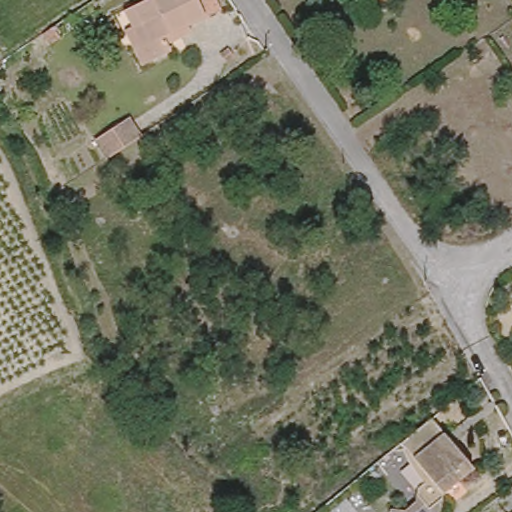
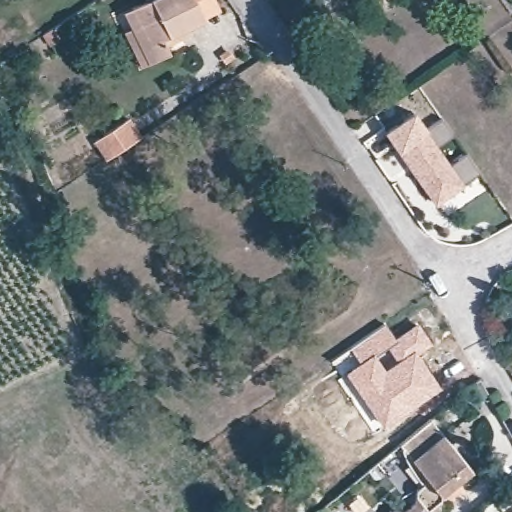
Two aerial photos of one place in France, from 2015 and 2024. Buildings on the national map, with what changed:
unchanged [(131,27),(123,12),(145,1),(145,0),(195,0),(205,20),(188,28),(192,34),(167,46),(170,52),(148,63),(141,67),(123,32),(131,27)]
unchanged [(61,38),(49,46),(40,35),(53,26),(61,38)]
unchanged [(234,57),(225,64),(219,55),(227,49),(234,57)]
new [(414,111),(428,131),(444,121),(453,134),(437,146),(450,166),(467,155),(481,175),(437,204),(398,149),(385,131),(414,111)]
unchanged [(106,160),(95,140),(129,118),(141,137),(106,160)]
new [(349,347),(385,322),(396,336),(417,321),(431,342),(418,351),(441,386),(382,425),(344,371),(359,361),(349,347)]
unchanged [(445,493),(443,512),(393,512),(394,510),(409,510),(419,501),(421,488),(427,483),(413,463),(406,450),(408,447),(404,442),(434,418),(477,469),(445,493)]

